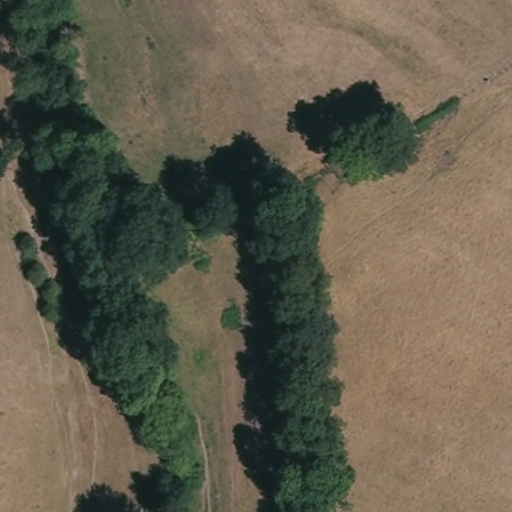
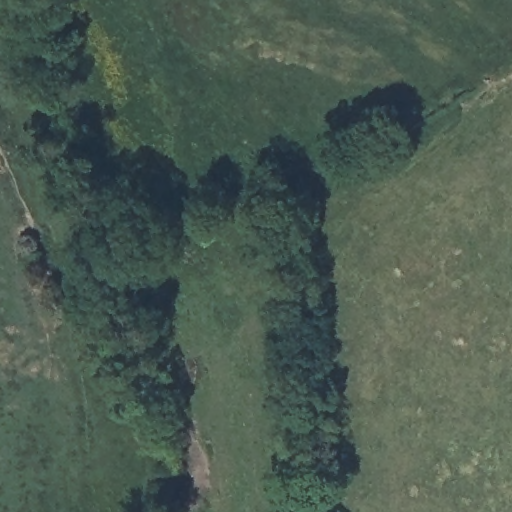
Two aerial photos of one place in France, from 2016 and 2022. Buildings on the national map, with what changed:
[]

